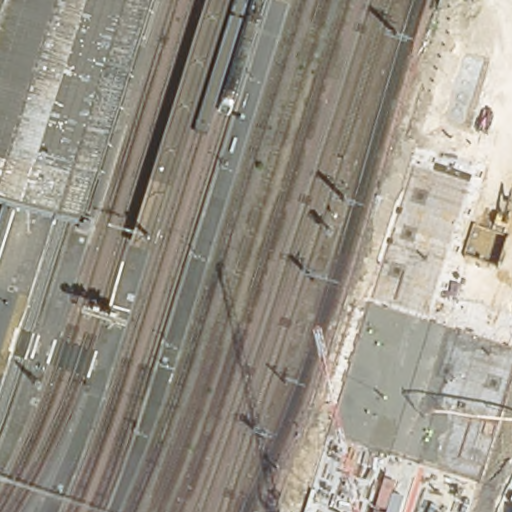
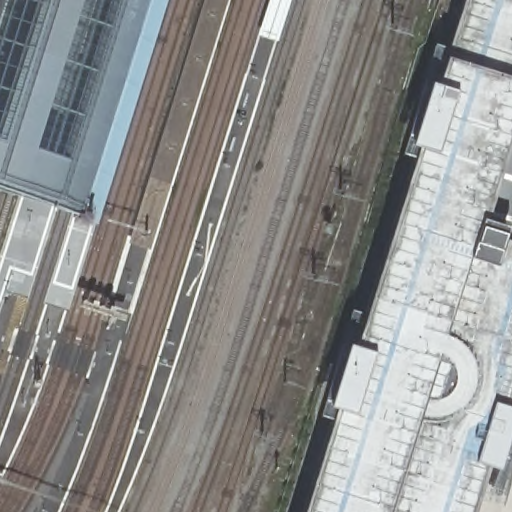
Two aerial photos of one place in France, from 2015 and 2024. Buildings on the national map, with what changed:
unchanged [(149,0),(81,218),(0,193),(0,0),(149,0)]
unchanged [(167,0),(97,223),(81,218),(149,0),(167,0)]
unchanged [(195,0),(234,0),(155,255),(119,244),(195,0)]
unchanged [(276,0),(289,0),(287,4),(276,0)]
new [(459,0),(512,0),(512,81),(441,57),(459,0)]
new [(441,57),(512,81),(512,133),(479,235),(512,246),(512,383),(472,512),(300,512),(441,57)]
new [(512,133),(512,246),(479,235),(512,133)]

